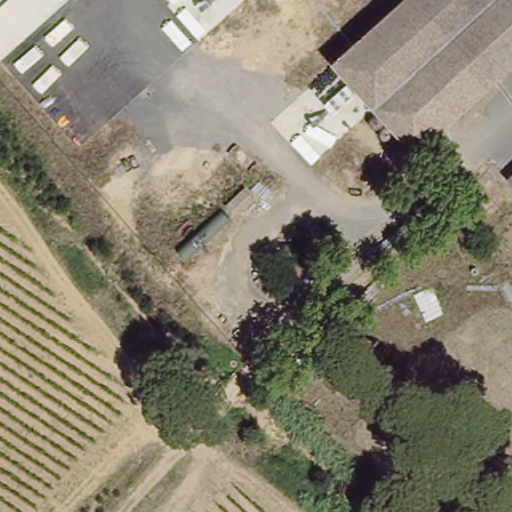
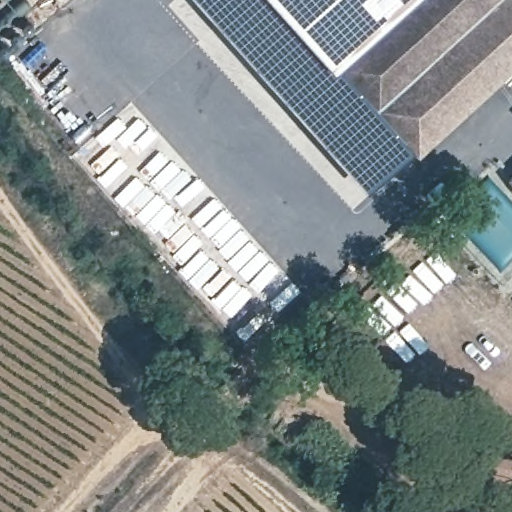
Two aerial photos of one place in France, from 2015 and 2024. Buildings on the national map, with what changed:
new [(422,150),(417,153),(412,148),(366,188),(196,0),(408,0),(341,60),(422,150)]
unchanged [(341,60),(408,0),(512,0),(512,67),(422,150),(341,60)]
unchanged [(512,177),(512,182),(510,179),(512,177)]
demolished [(282,250),(294,239),(311,257),(299,268),(285,255),(282,250)]
unchanged [(309,380),(292,395),(277,380),(294,364),(309,380)]

